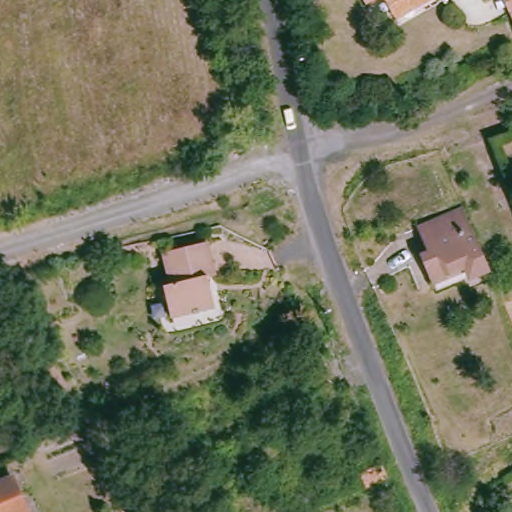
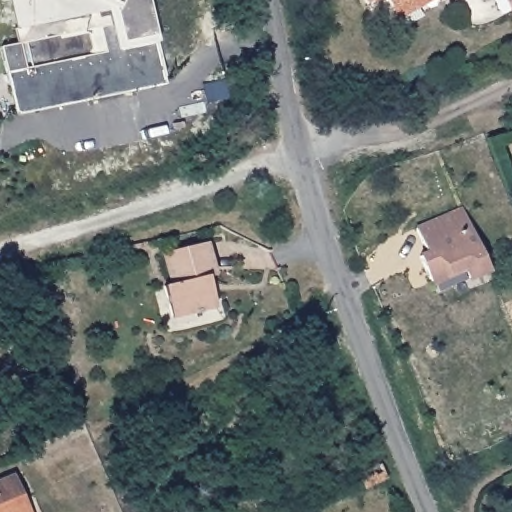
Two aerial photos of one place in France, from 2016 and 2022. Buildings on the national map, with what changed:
new [(20,44),(17,30),(10,1),(5,2),(5,0),(148,0),(157,42),(165,84),(18,115),(4,47),(20,44)]
unchanged [(355,0),(363,0),(356,3),(355,0)]
unchanged [(391,27),(380,0),(439,0),(440,4),(391,27)]
unchanged [(507,0),(512,0),(512,11),(507,0)]
unchanged [(490,270),(472,279),(467,267),(433,282),(421,257),(433,252),(423,227),(464,209),(490,270)]
unchanged [(218,277),(205,279),(206,285),(211,283),(215,308),(175,317),(168,287),(175,285),(167,253),(211,245),(218,277)]
unchanged [(57,337),(45,341),(40,326),(50,322),(57,337)]
unchanged [(385,481),(364,490),(358,475),(377,466),(385,481)]
unchanged [(0,484),(10,480),(24,512),(0,512),(0,484)]

